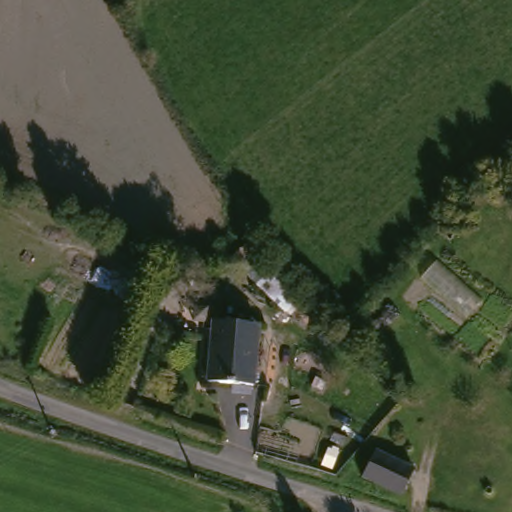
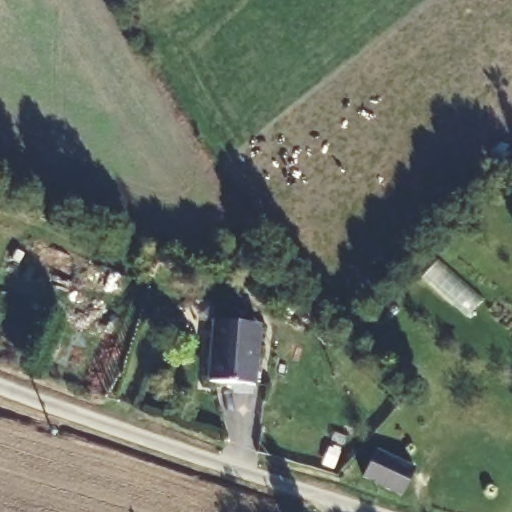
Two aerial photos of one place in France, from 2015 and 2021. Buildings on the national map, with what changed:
unchanged [(250,238),(310,292),(292,313),(232,257),(250,238)]
unchanged [(255,384),(210,381),(215,321),(259,326),(255,384)]
unchanged [(369,472),(379,447),(418,463),(408,489),(369,472)]

